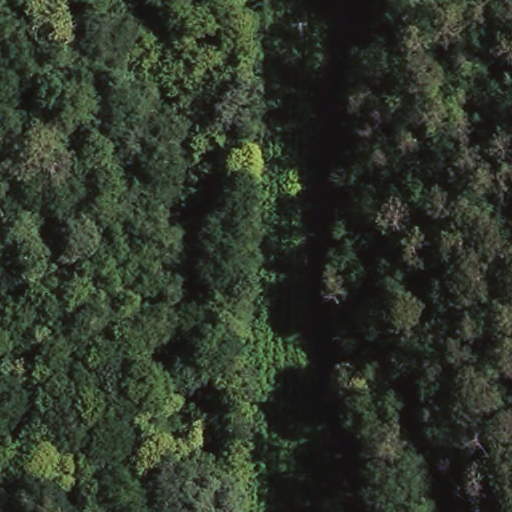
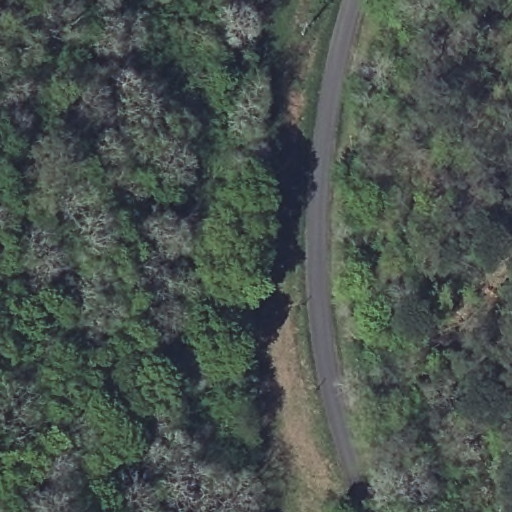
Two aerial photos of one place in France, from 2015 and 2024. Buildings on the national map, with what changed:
unchanged [(312,75),(306,73),(308,61),(315,64),(321,65),(317,76),(312,75)]

